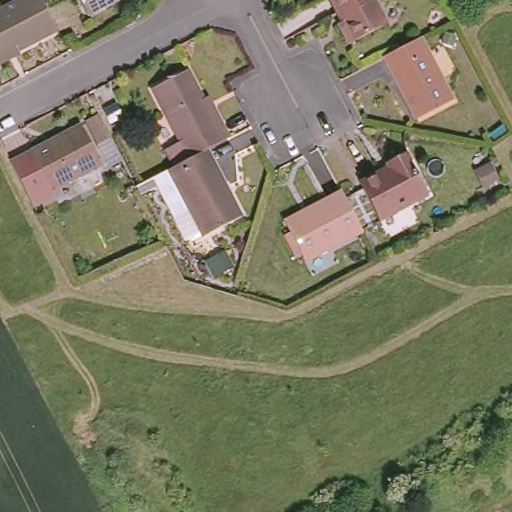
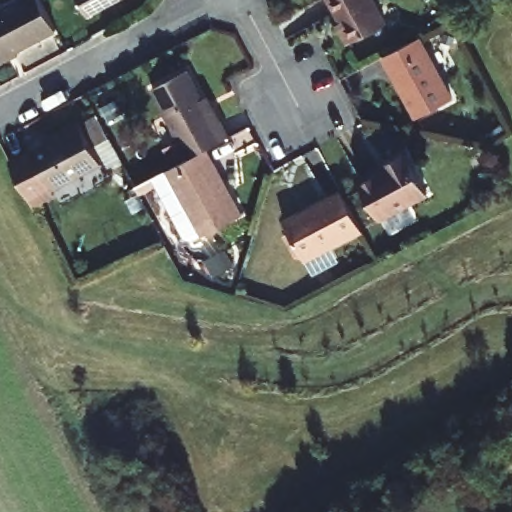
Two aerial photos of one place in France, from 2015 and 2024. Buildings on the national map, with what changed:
unchanged [(0,60),(0,11),(20,0),(45,0),(60,27),(0,60)]
unchanged [(85,11),(79,0),(107,0),(85,11)]
unchanged [(352,39),(342,21),(345,18),(335,0),(378,0),(389,20),(352,39)]
unchanged [(420,114),(387,52),(421,34),(454,96),(420,114)]
unchanged [(205,145),(187,155),(170,164),(161,147),(177,138),(149,85),(185,67),(206,106),(210,105),(225,135),(205,145)]
unchanged [(100,156),(49,183),(32,151),(28,143),(54,130),(79,116),(100,156)]
unchanged [(182,235),(170,213),(150,175),(165,167),(170,164),(187,155),(205,145),(222,178),(232,197),(240,213),(201,234),(199,231),(187,237),(182,235)]
unchanged [(382,215),(362,178),(390,163),(387,158),(407,147),(430,189),(382,215)]
unchanged [(360,227),(304,257),(285,222),(282,217),(310,203),(339,187),(360,227)]

